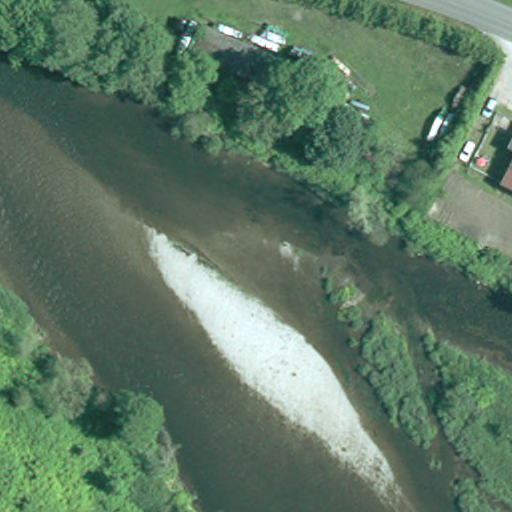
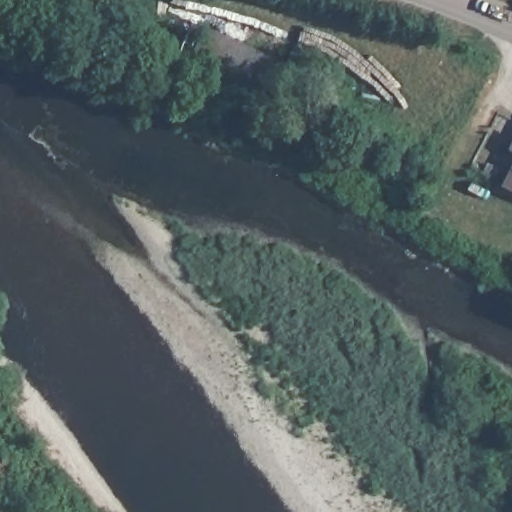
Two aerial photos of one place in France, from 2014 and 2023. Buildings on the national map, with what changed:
unchanged [(512,165),(512,173),(509,171),(512,165)]

